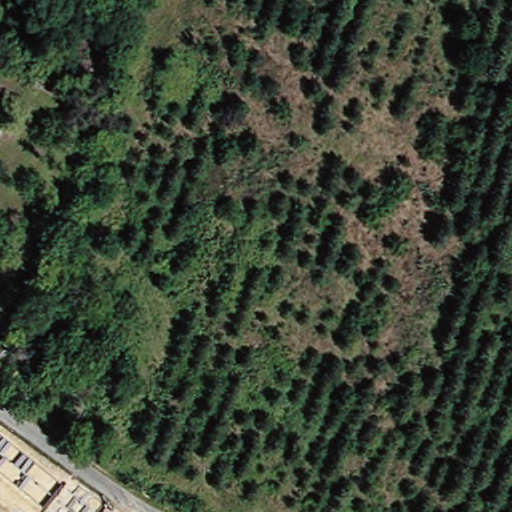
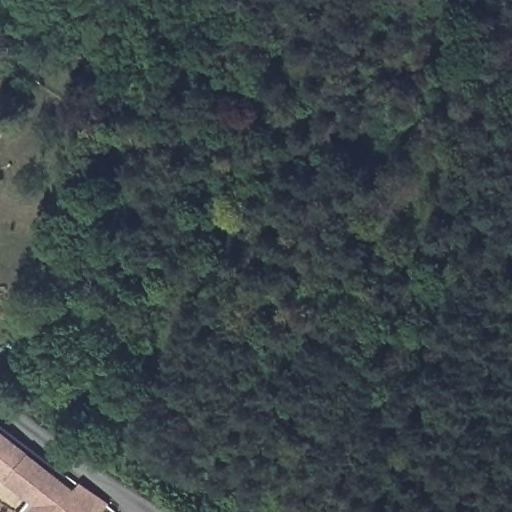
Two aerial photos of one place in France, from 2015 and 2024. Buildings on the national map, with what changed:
new [(81,485),(109,504),(103,512),(23,512),(31,502),(7,482),(0,477),(0,430),(76,491),(81,485)]
demolished [(0,432),(75,496),(82,488),(104,508),(101,512),(44,512),(0,474),(0,432)]

